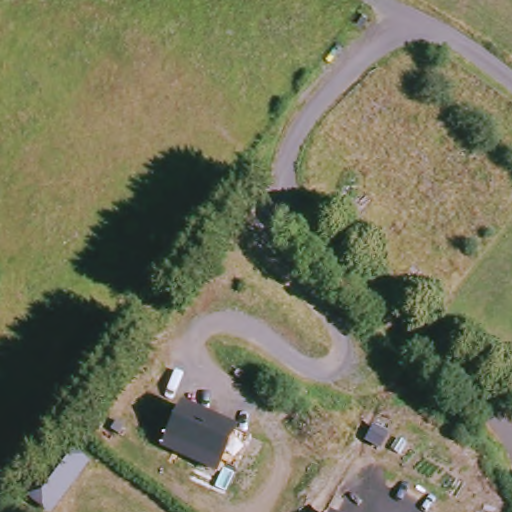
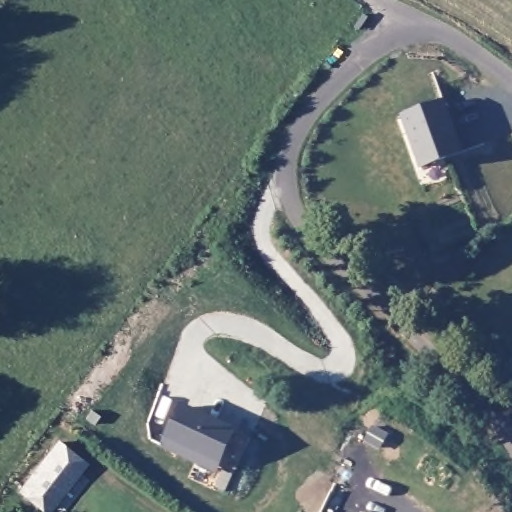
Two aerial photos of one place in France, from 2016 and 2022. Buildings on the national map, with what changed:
new [(442,101),(461,152),(420,167),(401,116),(442,101)]
unchanged [(248,435),(235,467),(220,461),(215,474),(191,464),(197,450),(166,435),(180,403),(248,435)]
unchanged [(88,463),(52,512),(50,512),(28,495),(65,446),(88,463)]

